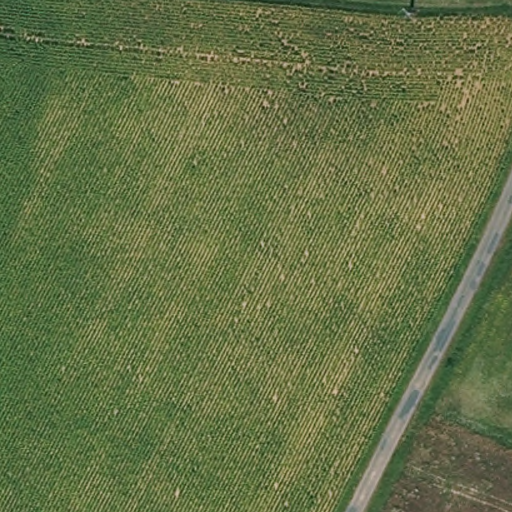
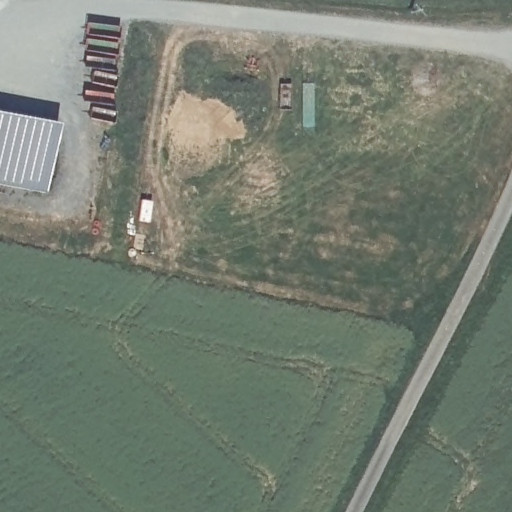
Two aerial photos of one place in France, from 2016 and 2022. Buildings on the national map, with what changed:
new [(49,184),(0,177),(0,106),(59,115),(49,184)]

